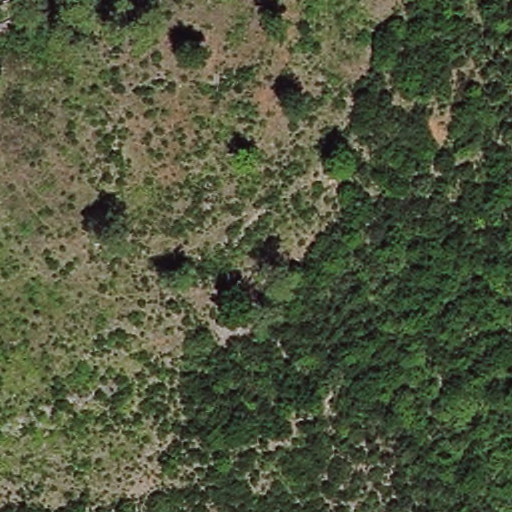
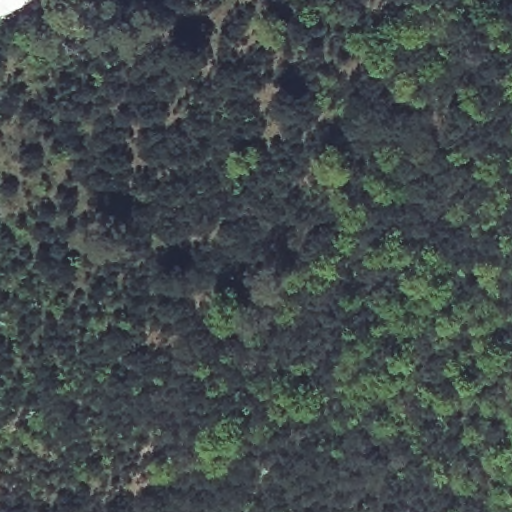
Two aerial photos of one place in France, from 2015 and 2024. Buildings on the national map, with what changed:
new [(0,14),(0,0),(35,0),(2,17),(0,14)]

